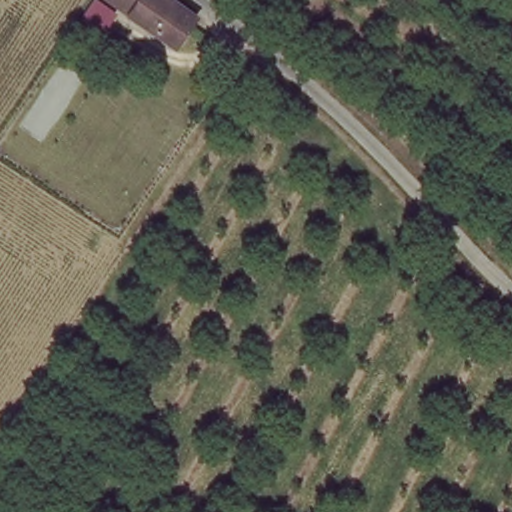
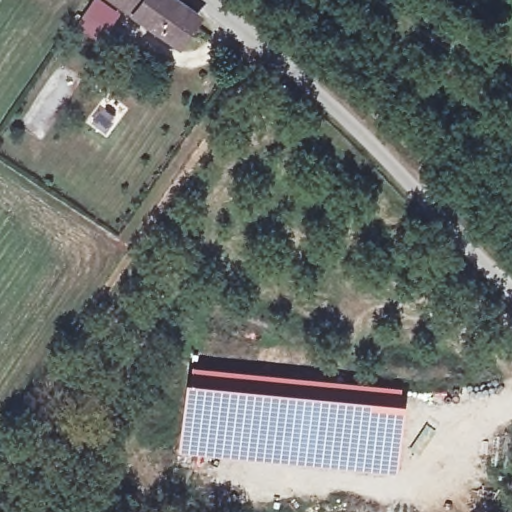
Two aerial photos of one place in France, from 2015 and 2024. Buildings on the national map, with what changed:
unchanged [(178,52),(125,17),(99,0),(180,0),(201,15),(178,52)]
unchanged [(132,70),(115,58),(124,45),(142,57),(132,70)]
new [(401,391),(393,472),(186,452),(194,370),(401,391)]

